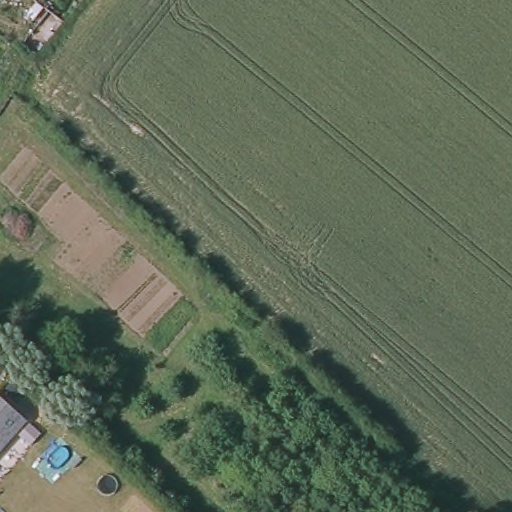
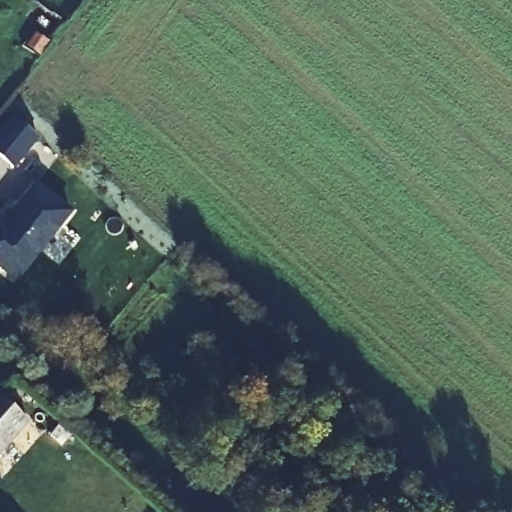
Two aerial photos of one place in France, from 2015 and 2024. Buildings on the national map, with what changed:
new [(13,118),(37,136),(12,167),(0,158),(0,135),(13,118)]
new [(0,268),(0,219),(5,222),(21,203),(23,204),(28,198),(26,196),(36,184),(70,211),(38,251),(15,280),(10,276),(0,268)]
unchanged [(31,416),(0,453),(0,390),(31,416)]

